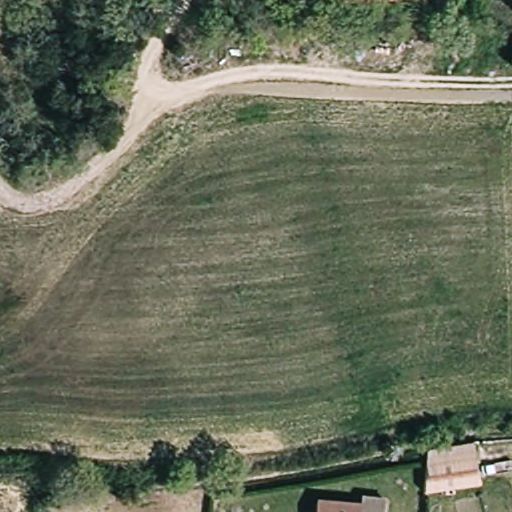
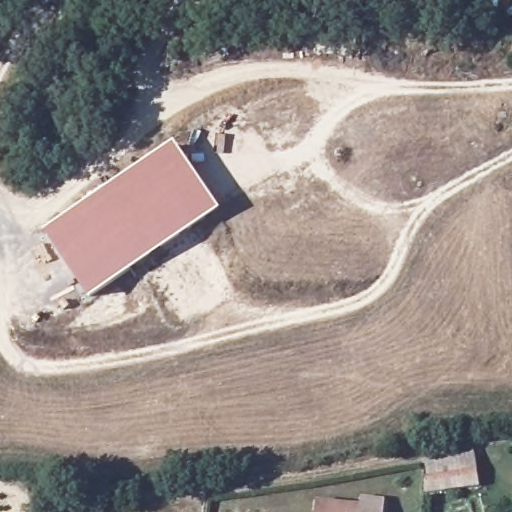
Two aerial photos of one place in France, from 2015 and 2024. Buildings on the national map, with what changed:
unchanged [(317,4),(317,0),(458,0),(458,5),(317,4)]
new [(158,158),(179,188),(194,179),(214,210),(175,233),(163,241),(166,245),(90,296),(48,235),(158,158)]
unchanged [(480,486),(423,493),(422,481),(425,480),(423,461),(440,459),(439,448),(474,444),(480,486)]
unchanged [(352,507),(353,500),(376,502),(374,512),(306,512),(308,502),(352,507)]

